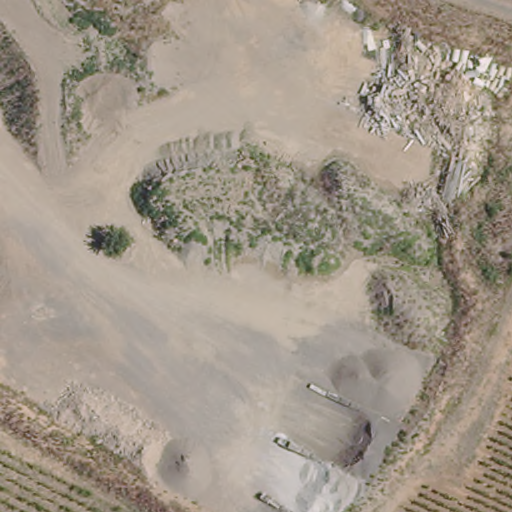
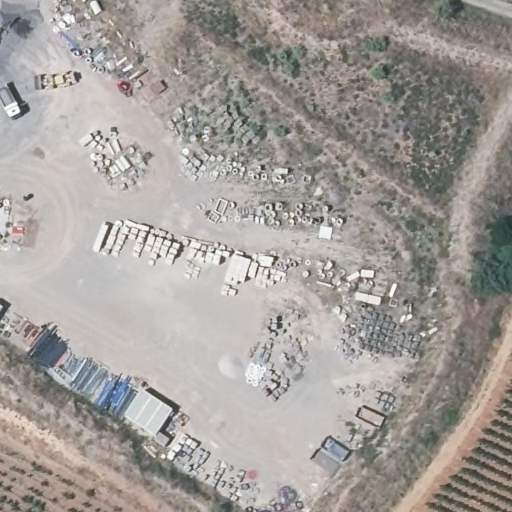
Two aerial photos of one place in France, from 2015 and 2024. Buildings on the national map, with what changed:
[]

